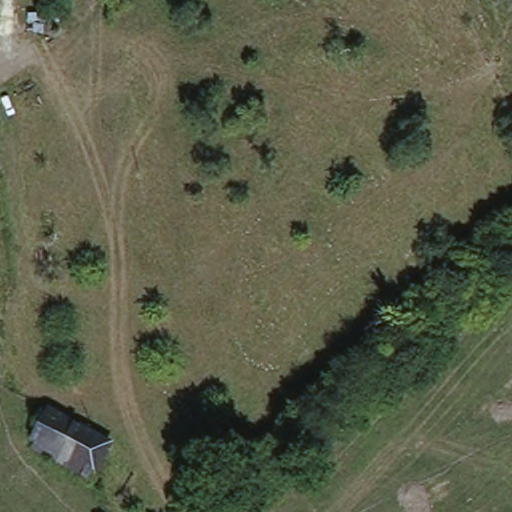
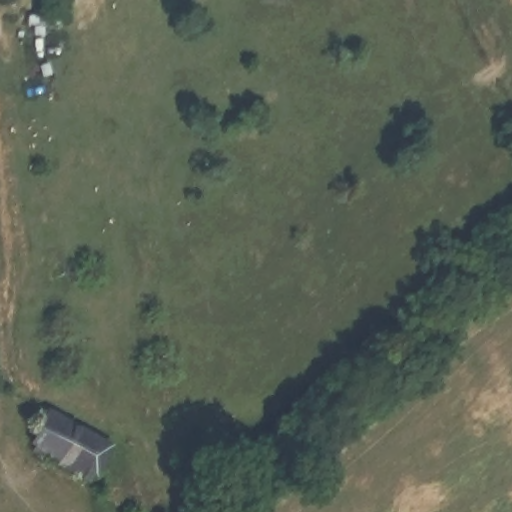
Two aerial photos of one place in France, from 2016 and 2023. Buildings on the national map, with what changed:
unchanged [(21,436),(44,401),(116,449),(92,483),(21,436)]

